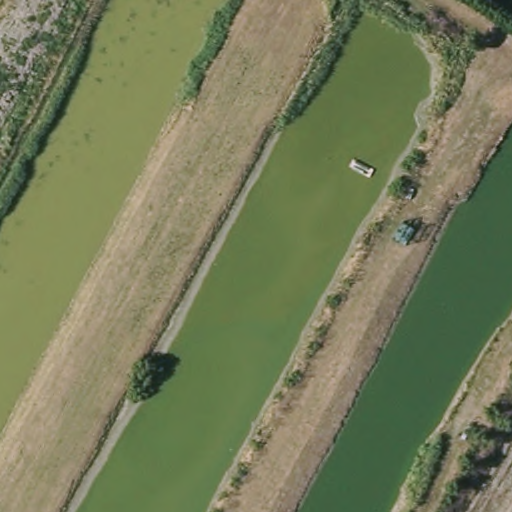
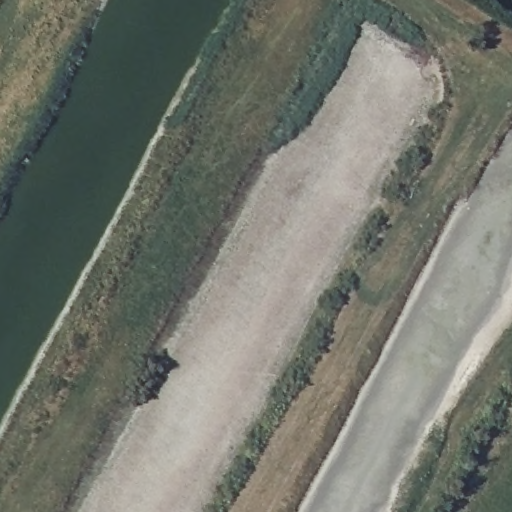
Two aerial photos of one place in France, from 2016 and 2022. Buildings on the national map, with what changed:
[]

